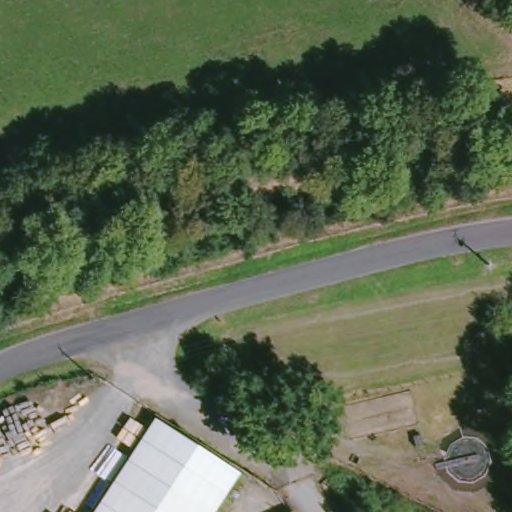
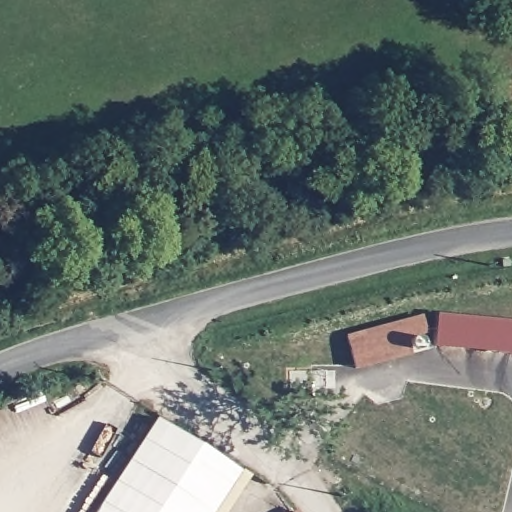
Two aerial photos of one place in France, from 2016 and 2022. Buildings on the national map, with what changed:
new [(437,316),(512,322),(512,355),(437,348),(437,316)]
new [(358,369),(349,337),(423,318),(430,351),(358,369)]
unchanged [(158,420),(244,475),(220,512),(98,512),(158,420)]
unchanged [(296,511),(296,512),(295,512),(296,511)]

